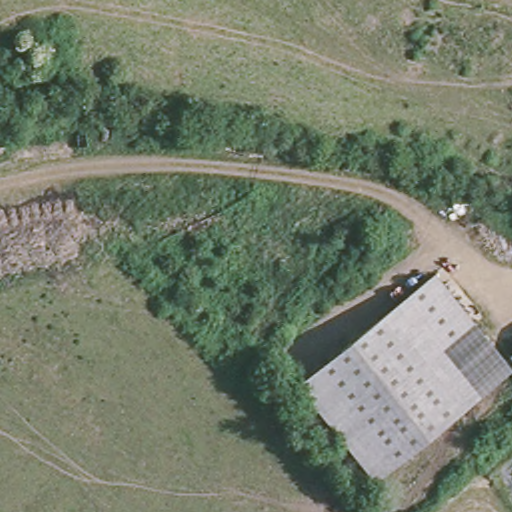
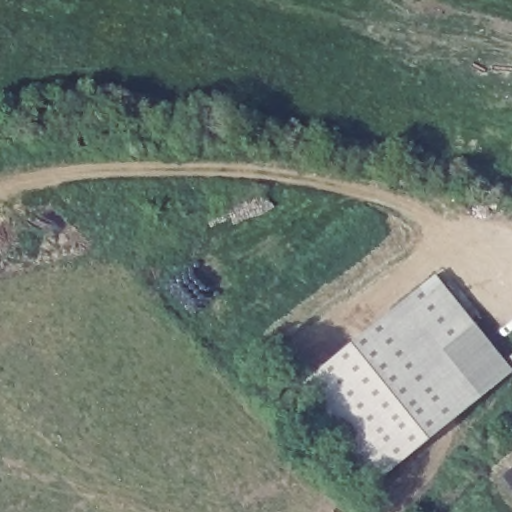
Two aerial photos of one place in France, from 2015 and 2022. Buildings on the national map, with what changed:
unchanged [(434,277),(472,323),(441,349),(478,396),(374,480),(299,387),(434,277)]
unchanged [(512,370),(478,396),(441,349),(472,323),(512,368),(512,370)]
unchanged [(512,354),(512,360),(509,356),(512,354)]

